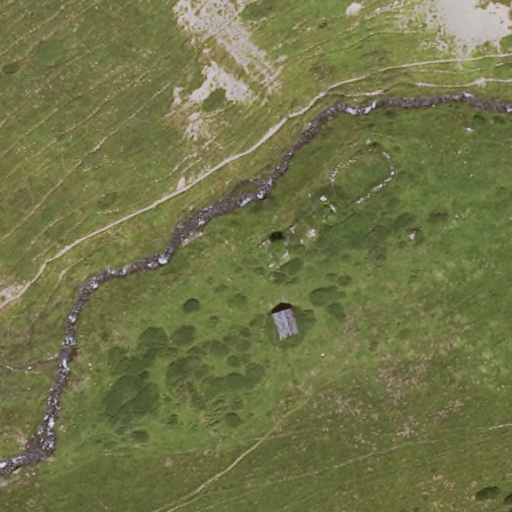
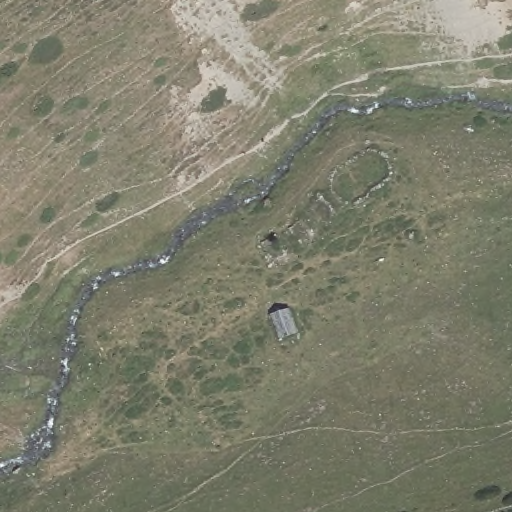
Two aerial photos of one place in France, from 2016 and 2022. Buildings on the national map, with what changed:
unchanged [(294,322),(299,340),(280,346),(270,310),(289,304),(294,322)]

